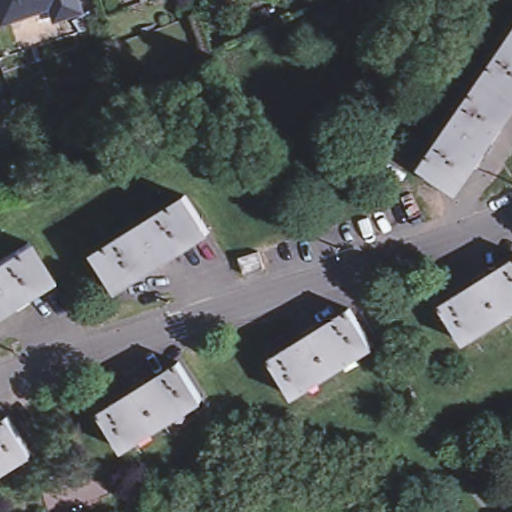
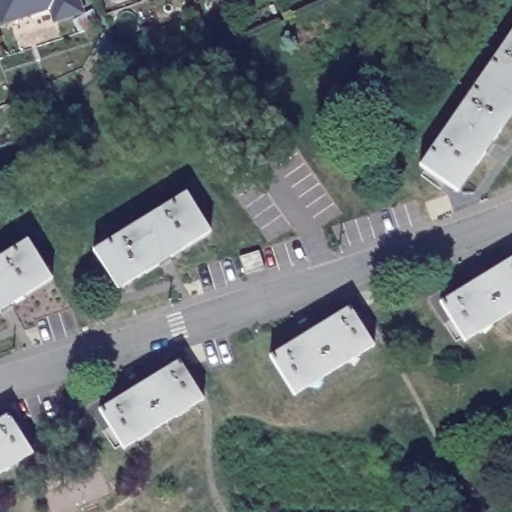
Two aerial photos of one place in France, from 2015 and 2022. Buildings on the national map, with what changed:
unchanged [(81,10),(56,19),(52,6),(4,22),(0,12),(0,0),(77,0),(81,10)]
unchanged [(419,170),(512,38),(512,111),(454,194),(419,170)]
unchanged [(92,252),(185,196),(208,230),(115,288),(92,252)]
unchanged [(24,242),(48,277),(0,306),(0,256),(24,242)]
unchanged [(512,258),(512,308),(462,339),(440,303),(512,258)]
unchanged [(274,361),(352,312),(375,348),(297,396),(274,361)]
unchanged [(98,410),(178,360),(201,396),(120,445),(98,410)]
unchanged [(12,420),(34,455),(0,476),(0,427),(12,420)]

